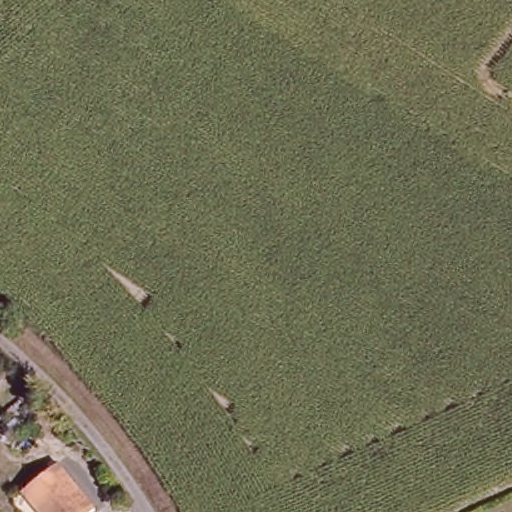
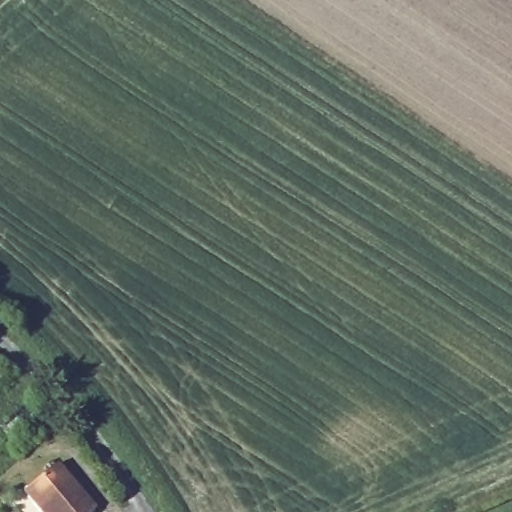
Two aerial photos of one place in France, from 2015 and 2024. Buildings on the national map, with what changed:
unchanged [(20,501),(54,471),(92,512),(31,512),(20,501)]

